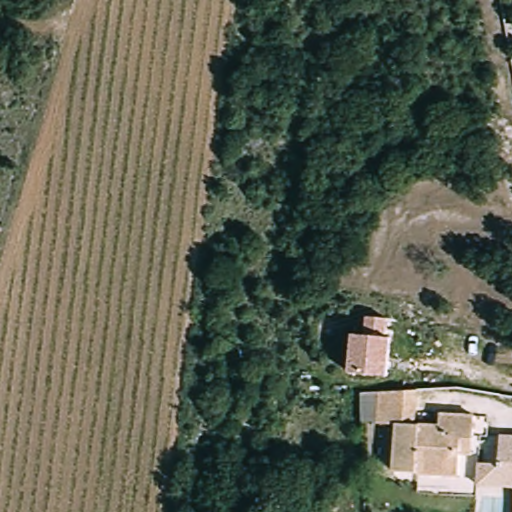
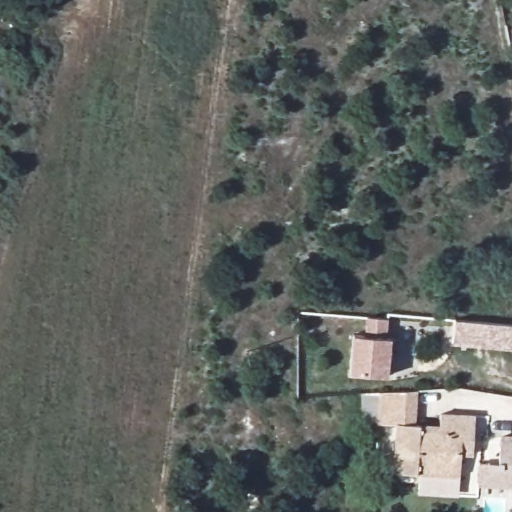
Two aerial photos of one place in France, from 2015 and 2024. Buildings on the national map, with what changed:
unchanged [(349,365),(353,327),(366,329),(368,310),(388,312),(386,331),(391,331),(387,369),(349,365)]
new [(452,344),(454,320),(512,325),(512,350),(452,344)]
unchanged [(387,472),(389,447),(392,422),(372,420),(371,390),(418,390),(414,425),(439,427),(441,414),(479,418),(474,448),(473,467),(456,465),(454,480),(387,472)]
unchanged [(479,486),(479,464),(501,463),(502,434),(512,434),(512,489),(479,486)]

